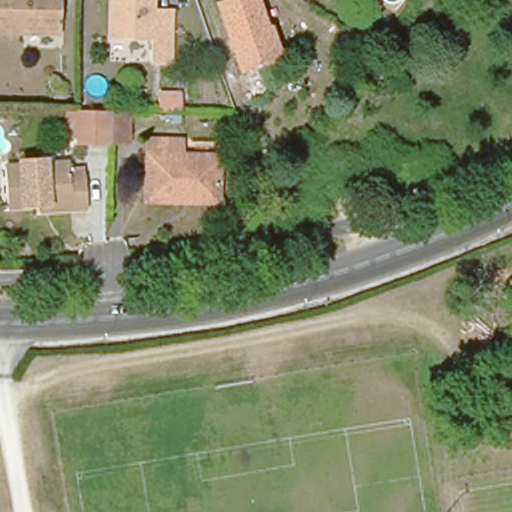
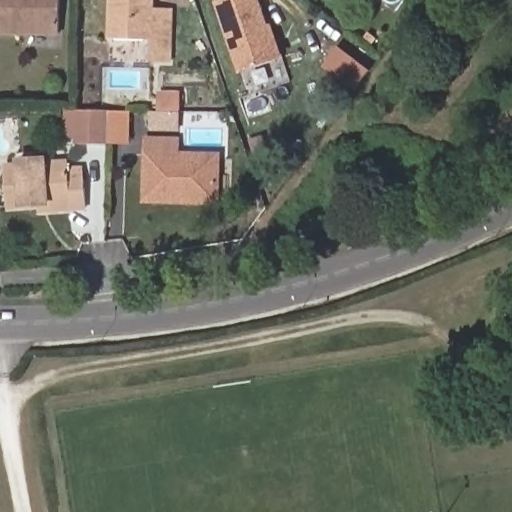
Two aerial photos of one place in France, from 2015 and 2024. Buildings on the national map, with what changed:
unchanged [(0,0),(57,0),(57,34),(0,32),(0,0)]
unchanged [(155,0),(155,15),(175,16),(173,61),(154,60),(154,38),(116,38),(116,0),(155,0)]
unchanged [(215,3),(223,0),(255,0),(277,62),(242,75),(215,3)]
unchanged [(157,96),(174,96),(174,113),(156,113),(157,96)]
unchanged [(123,146),(109,147),(71,147),(71,139),(62,139),(62,113),(79,113),(110,113),(124,113),(123,146)]
unchanged [(181,203),(148,202),(149,141),(180,142),(180,161),(218,161),(217,195),(217,203),(181,203)]
unchanged [(11,202),(8,157),(72,155),(72,170),(88,170),(90,197),(61,199),(40,200),(11,202)]

